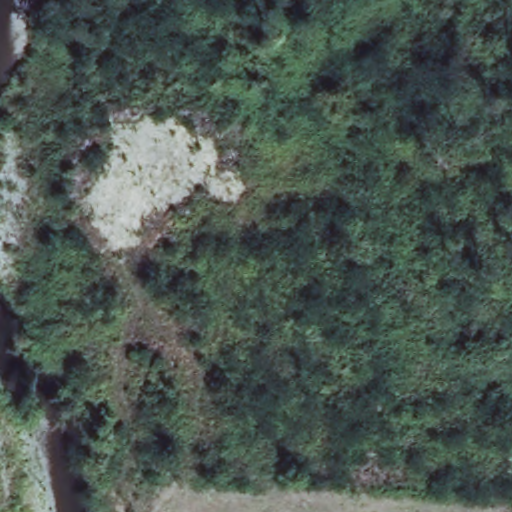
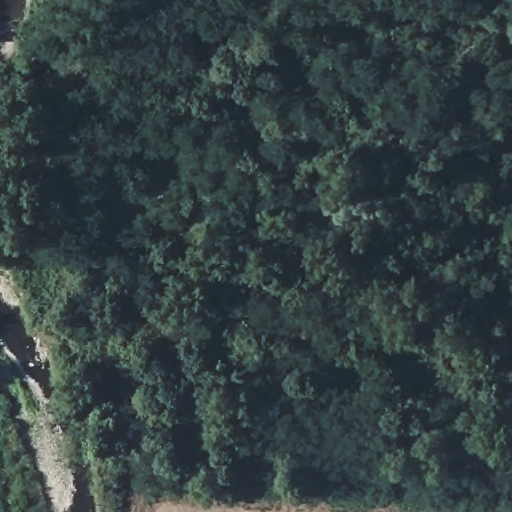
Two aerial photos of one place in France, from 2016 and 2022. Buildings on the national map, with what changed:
[]

